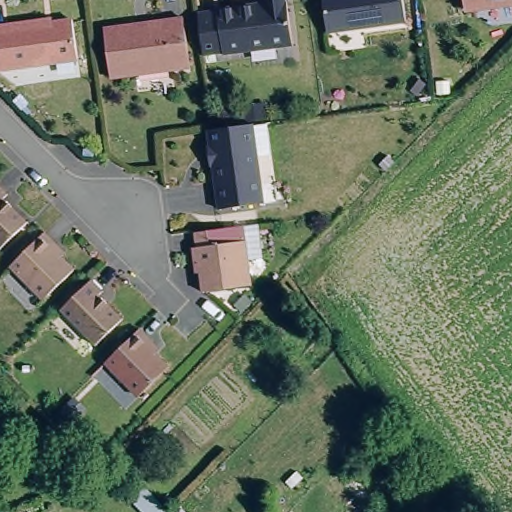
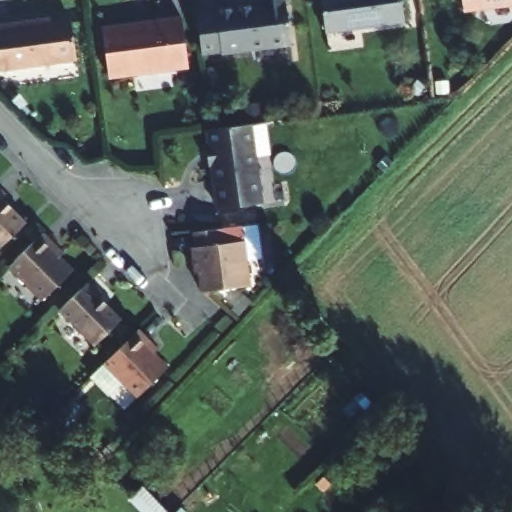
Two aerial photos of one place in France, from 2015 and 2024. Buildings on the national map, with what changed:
unchanged [(227,56),(227,54),(207,57),(202,22),(202,17),(222,14),(222,12),(268,7),(267,2),(283,0),(291,0),(297,48),(227,56)]
unchanged [(326,35),(322,0),(403,0),(406,24),(326,35)]
unchanged [(464,0),(512,0),(512,7),(466,13),(464,0)]
unchanged [(194,70),(113,80),(107,31),(141,27),(141,30),(150,29),(150,25),(187,21),(194,70)]
unchanged [(44,25),(75,22),(80,62),(1,71),(0,67),(0,27),(44,22),(44,25)]
unchanged [(266,206),(222,212),(219,187),(216,188),(214,169),(216,169),(212,133),(217,132),(255,127),(266,206)]
unchanged [(3,192),(0,195),(0,189),(3,192)]
unchanged [(23,220),(0,243),(0,197),(23,220)]
unchanged [(255,290),(205,296),(203,277),(198,277),(195,252),(199,251),(197,236),(207,235),(247,230),(255,290)]
unchanged [(58,248),(53,253),(74,274),(45,304),(11,270),(46,236),(58,248)]
unchanged [(100,290),(96,294),(119,318),(92,345),(57,310),(88,279),(100,290)]
unchanged [(155,346),(150,350),(172,372),(143,401),(109,367),(115,361),(143,334),(155,346)]

